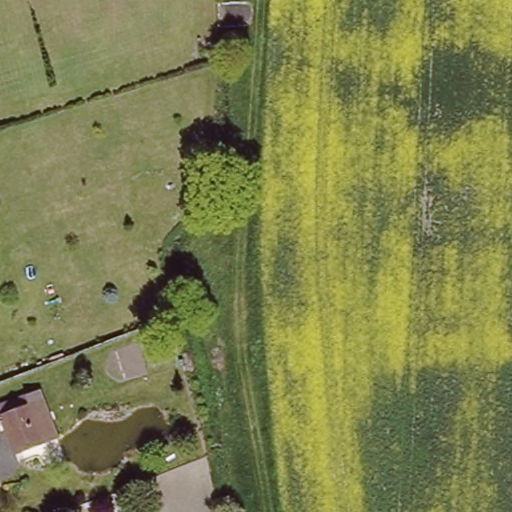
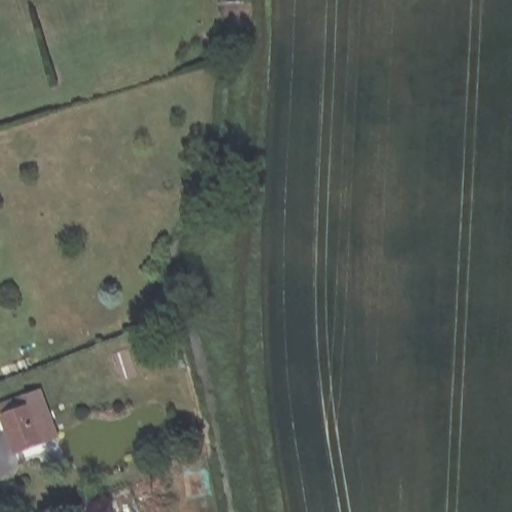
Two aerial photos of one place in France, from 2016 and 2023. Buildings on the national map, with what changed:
unchanged [(45,402),(58,447),(13,458),(0,428),(0,419),(45,402)]

